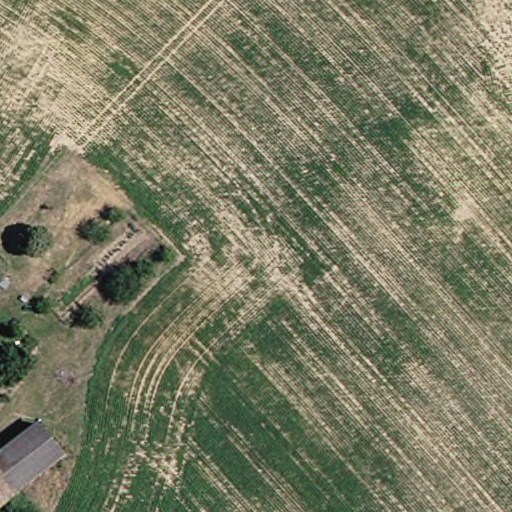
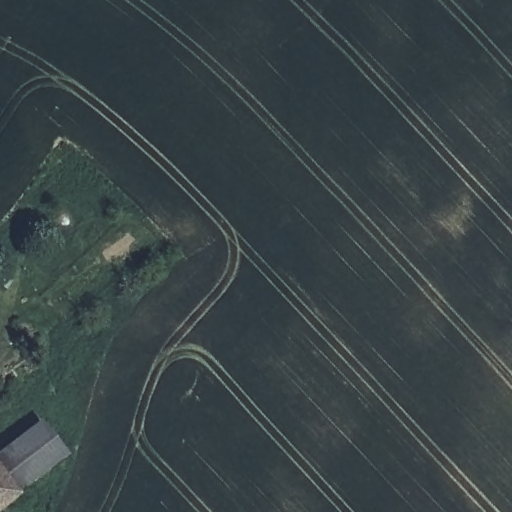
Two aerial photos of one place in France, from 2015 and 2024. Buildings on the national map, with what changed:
unchanged [(21,494),(23,496),(1,512),(0,512),(0,459),(44,424),(69,458),(23,493),(21,494)]

